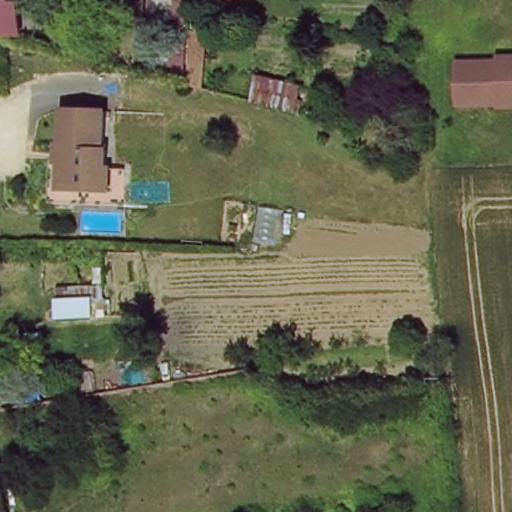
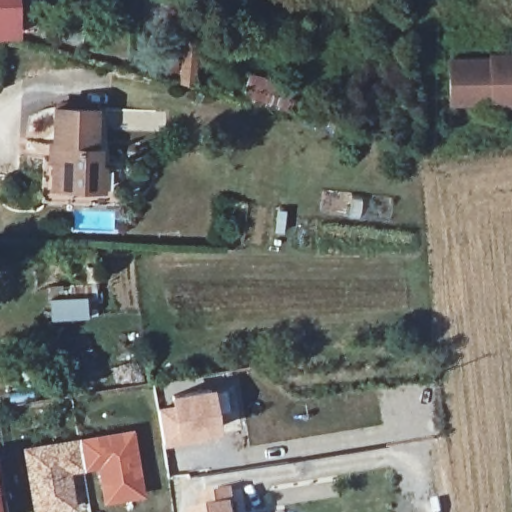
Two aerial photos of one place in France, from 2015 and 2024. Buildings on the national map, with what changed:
unchanged [(0,34),(0,0),(10,0),(11,34),(0,34)]
unchanged [(178,1),(177,15),(185,15),(184,24),(195,25),(195,51),(205,52),(204,67),(195,67),(193,90),(179,89),(179,71),(164,71),(165,63),(158,63),(160,0),(190,0),(190,3),(178,1)]
unchanged [(445,64),(486,64),(486,60),(512,59),(512,107),(487,108),(487,105),(445,106),(445,64)]
unchanged [(284,80),(280,109),(237,102),(241,73),(284,80)]
unchanged [(94,191),(79,190),(44,186),(51,126),(53,106),(94,111),(91,137),(89,150),(93,150),(91,169),(96,170),(94,191)]
new [(159,453),(154,420),(171,417),(169,406),(207,400),(213,438),(198,440),(188,442),(198,441),(198,447),(189,448),(159,453)]
new [(134,430),(146,496),(104,504),(97,469),(70,473),(77,509),(59,512),(34,512),(23,446),(134,430)]
new [(201,505),(227,501),(229,512),(202,512),(201,505)]

